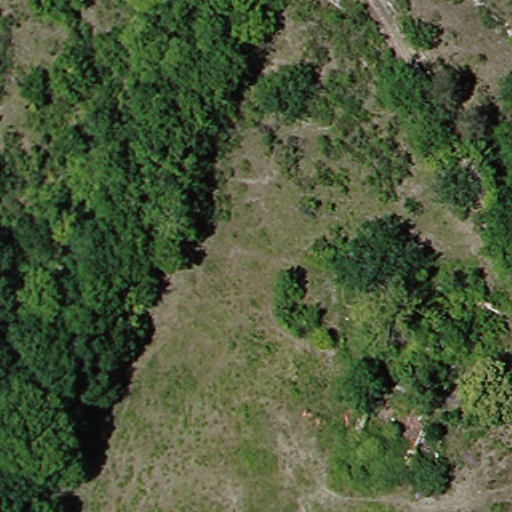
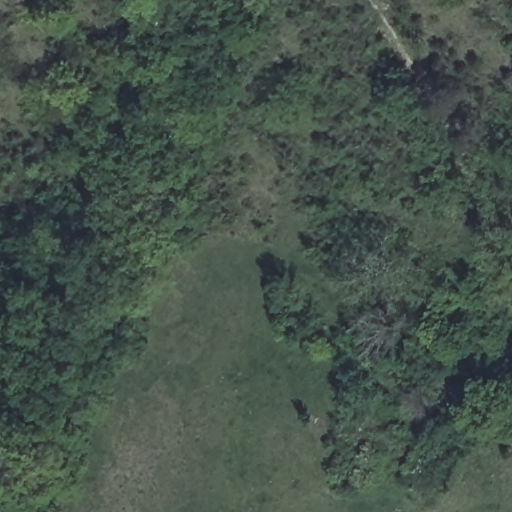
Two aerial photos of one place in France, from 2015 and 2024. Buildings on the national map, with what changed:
unchanged [(355,380),(414,399),(407,422),(348,403),(355,380)]
unchanged [(348,403),(407,422),(392,459),(336,441),(348,403)]

